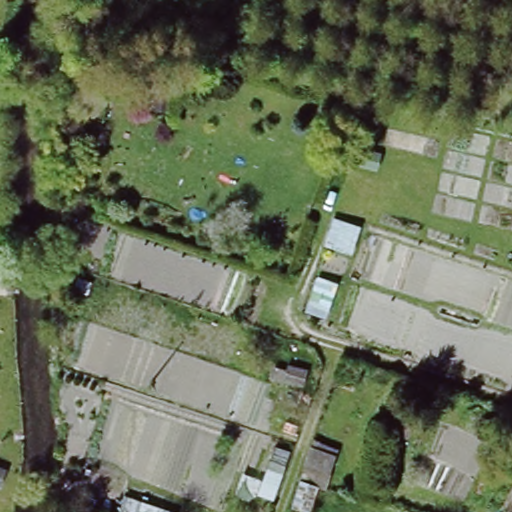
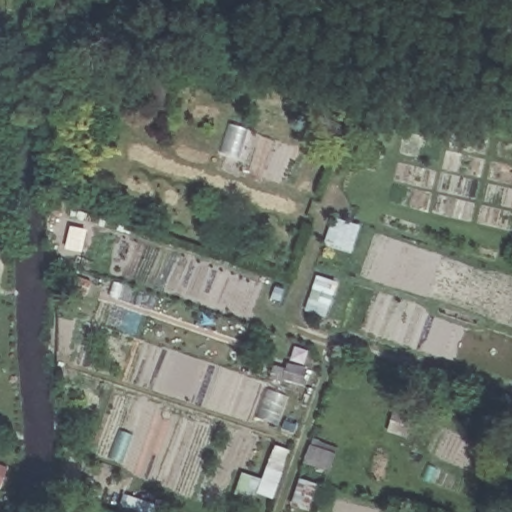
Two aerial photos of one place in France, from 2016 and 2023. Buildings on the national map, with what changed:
unchanged [(358,222),(352,250),(322,244),(332,214),(358,222)]
unchanged [(335,280),(327,310),(301,304),(314,277),(335,280)]
unchanged [(269,383),(270,368),(281,370),(284,365),(304,368),(304,389),(269,383)]
unchanged [(389,400),(416,409),(410,435),(382,428),(389,400)]
unchanged [(339,446),(321,488),(292,477),(311,438),(339,446)]
unchanged [(271,458),(264,473),(242,467),(245,450),(271,458)]

